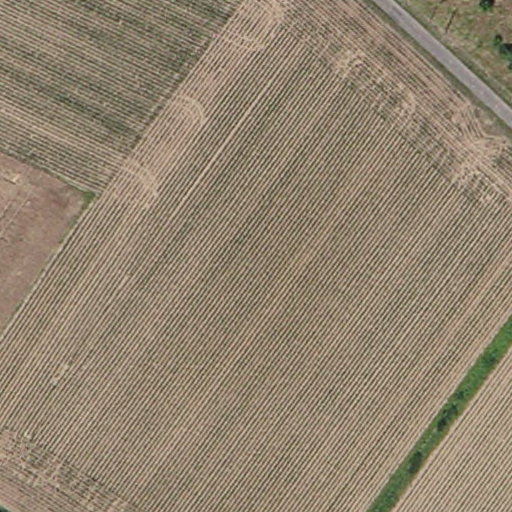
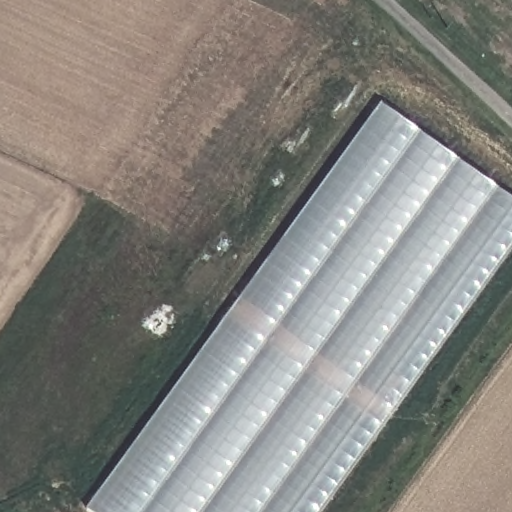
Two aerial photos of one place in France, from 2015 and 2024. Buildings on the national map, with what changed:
new [(97,512),(88,505),(379,101),(512,196),(512,246),(316,512),(97,512)]

